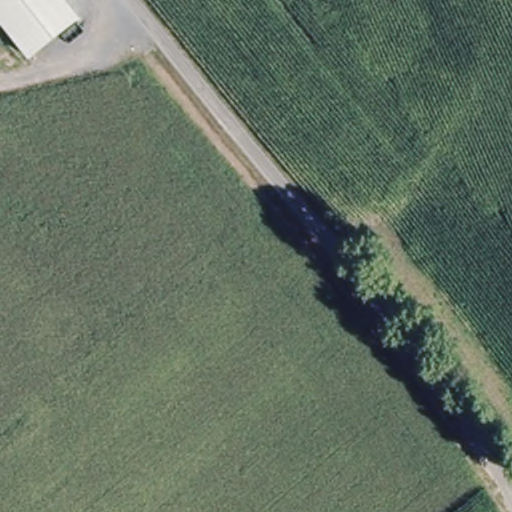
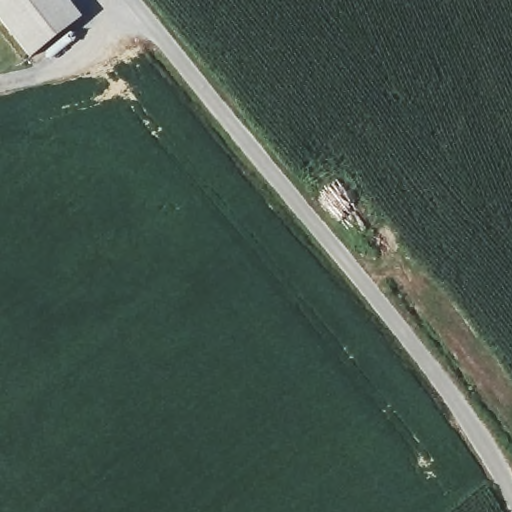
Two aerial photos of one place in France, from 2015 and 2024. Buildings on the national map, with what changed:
unchanged [(81,21),(29,61),(0,26),(0,0),(64,0),(81,21)]

